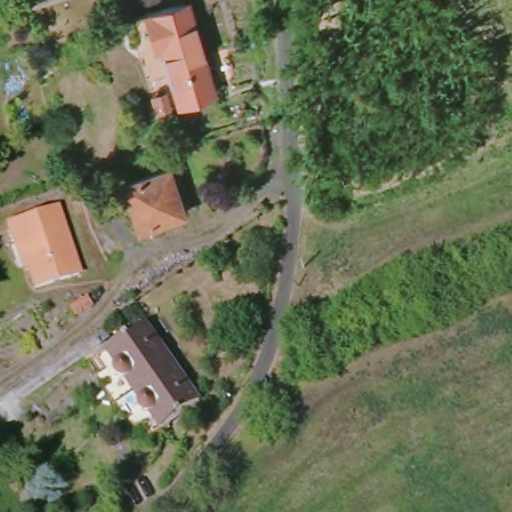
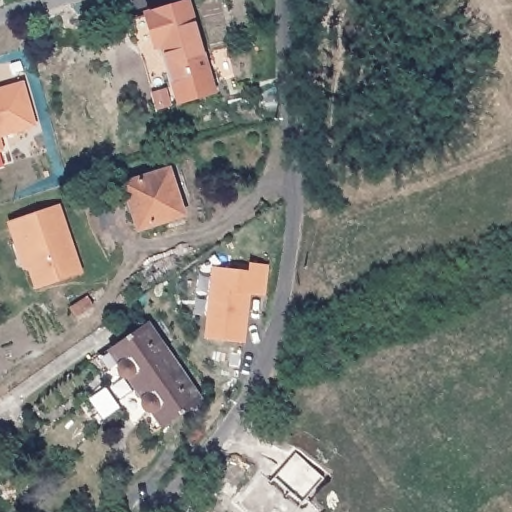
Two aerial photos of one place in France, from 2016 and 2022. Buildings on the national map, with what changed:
unchanged [(130,19),(187,3),(212,93),(156,110),(130,19)]
new [(0,88),(22,81),(35,128),(0,136),(0,88)]
new [(0,150),(0,136),(4,149),(0,150)]
unchanged [(124,188),(167,172),(182,217),(137,231),(124,188)]
unchanged [(17,249),(9,227),(57,210),(81,276),(37,292),(29,269),(24,271),(17,249)]
new [(214,269),(240,271),(241,263),(267,265),(264,298),(247,295),(243,341),(207,338),(214,269)]
unchanged [(124,378),(117,379),(113,376),(111,371),(112,364),(102,352),(138,323),(169,361),(132,389),(124,378)]
unchanged [(169,361),(198,396),(162,425),(151,412),(146,413),(140,410),(138,405),(137,402),(140,398),(132,389),(169,361)]

